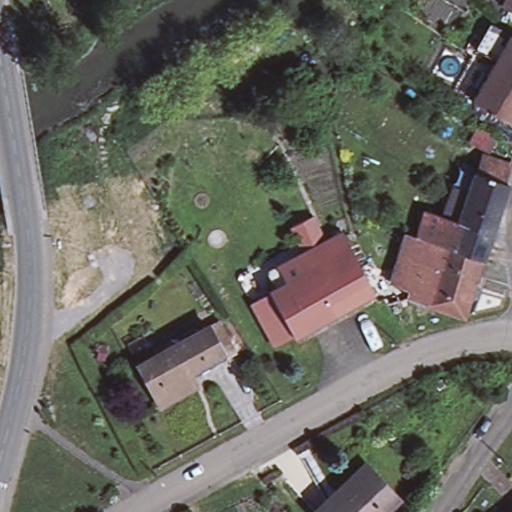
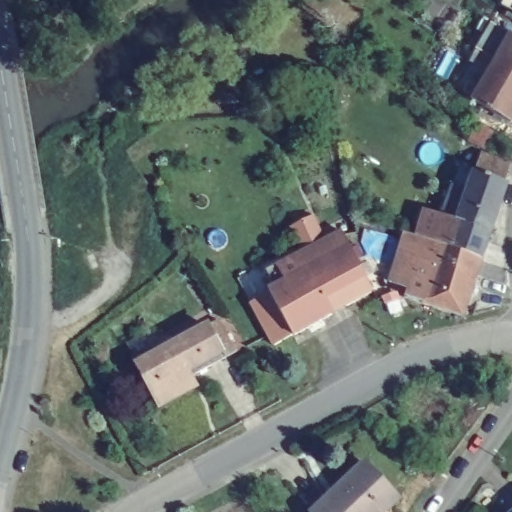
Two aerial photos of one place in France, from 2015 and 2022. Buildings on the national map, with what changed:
unchanged [(505,7),(505,8),(500,4),(503,0),(512,0),(512,11),(505,7)]
unchanged [(490,65),(472,54),(486,28),(505,39),(512,43),(512,94),(483,76),(490,65)]
unchanged [(467,105),(483,76),(512,94),(512,119),(507,128),(467,105)]
unchanged [(452,232),(453,228),(438,223),(442,213),(457,218),(470,179),(477,161),(505,170),(499,188),(503,189),(485,243),(452,232)]
unchanged [(413,243),(420,216),(430,220),(438,223),(453,228),(452,232),(485,243),(478,264),(413,243)]
unchanged [(264,299),(272,294),(263,277),(272,273),(295,260),(298,258),(292,244),(287,234),(307,223),(309,228),(317,224),(323,235),(315,239),(320,247),(337,238),(339,242),(367,297),(325,321),(287,341),(268,352),(247,310),(264,299)]
unchanged [(405,298),(408,288),(388,279),(392,269),(402,239),(413,243),(478,264),(473,280),(459,323),(459,324),(458,323),(402,305),(399,305),(398,297),(405,298)]
unchanged [(368,282),(380,278),(394,307),(382,310),(368,282)]
unchanged [(190,381),(155,400),(133,360),(203,323),(215,317),(226,339),(230,348),(220,354),(185,373),(190,381)]
unchanged [(336,482),(359,460),(363,464),(392,493),(382,503),(391,512),(310,512),(308,510),(336,482)]

